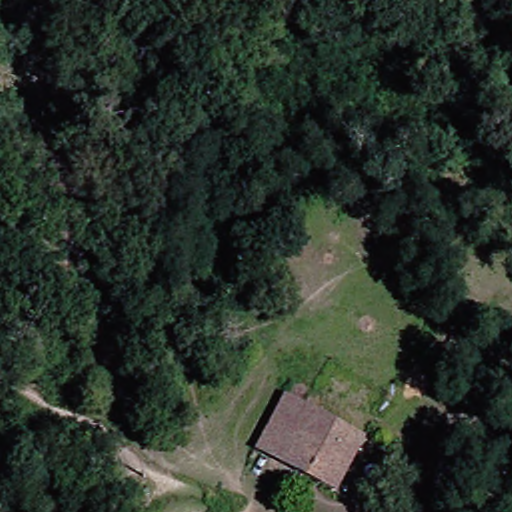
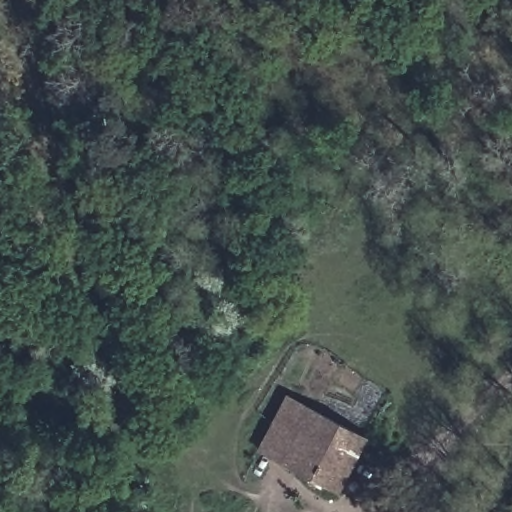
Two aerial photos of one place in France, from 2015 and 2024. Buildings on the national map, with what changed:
unchanged [(353,438),(330,485),(257,447),(280,400),(353,438)]

